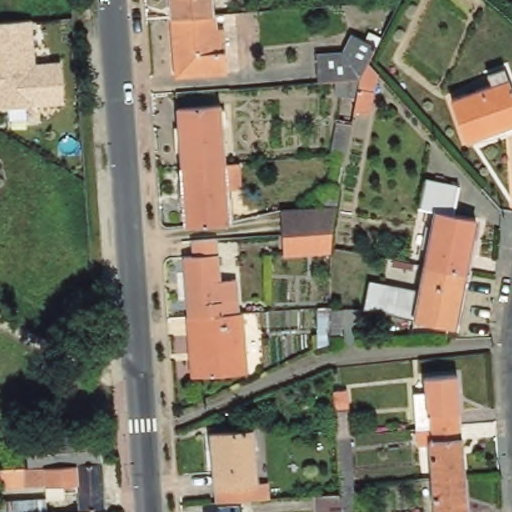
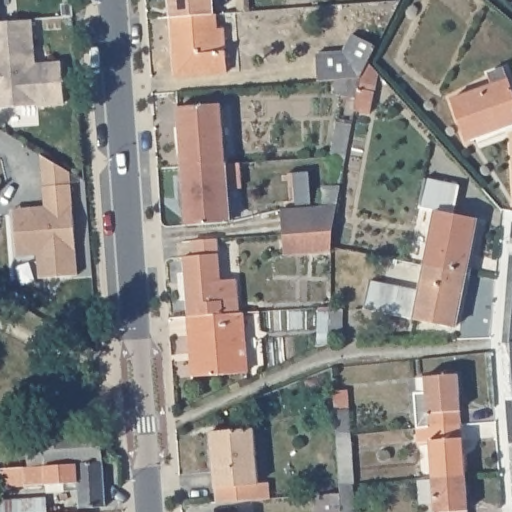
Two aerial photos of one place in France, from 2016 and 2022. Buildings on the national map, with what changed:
unchanged [(175,18),(173,18),(172,0),(213,0),(215,15),(175,18)]
unchanged [(221,29),(227,28),(231,73),(208,75),(207,71),(181,74),(178,40),(176,40),(175,18),(215,15),(220,15),(221,29)]
unchanged [(32,20),(35,63),(61,61),(65,103),(0,108),(0,24),(32,20)]
unchanged [(337,81),(321,82),(319,55),(346,52),(354,35),(377,46),(368,65),(376,74),(369,116),(354,114),(357,100),(339,101),(337,81)]
unchanged [(512,87),(512,125),(466,141),(452,99),(510,79),(512,87)]
unchanged [(222,106),(227,164),(183,167),(180,110),(222,106)]
unchanged [(352,126),(347,155),(333,156),(340,123),(352,126)]
unchanged [(227,164),(240,163),(241,181),(228,182),(231,224),(188,227),(183,167),(227,164)]
unchanged [(435,212),(417,208),(423,179),(459,186),(453,215),(474,219),(464,273),(424,266),(435,212)]
new [(46,186),(73,184),(80,275),(41,278),(40,254),(19,255),(16,220),(15,208),(29,207),(47,206),(46,186)]
unchanged [(281,214),(325,210),(324,188),(341,187),(332,236),(331,253),(331,256),(283,259),(282,240),(281,214)]
unchanged [(219,282),(236,281),(238,314),(188,318),(184,257),(193,256),(192,243),(216,240),(217,254),(219,282)]
unchanged [(419,290),(424,266),(464,273),(453,327),(363,311),(369,280),(419,290)]
unchanged [(56,297),(79,312),(72,324),(49,310),(56,297)]
unchanged [(238,314),(242,313),(245,374),(192,376),(188,318),(238,314)]
unchanged [(424,395),(424,378),(456,375),(460,427),(427,429),(415,430),(412,395),(424,395)]
unchanged [(333,468),(331,441),(328,398),(343,397),(346,440),(348,467),(333,468)]
unchanged [(460,427),(464,477),(431,479),(427,429),(460,427)]
unchanged [(253,433),(259,487),(271,487),(272,502),(216,506),(210,437),(253,433)]
unchanged [(104,435),(106,462),(31,467),(29,441),(104,435)]
unchanged [(31,467),(106,462),(108,507),(81,509),(79,482),(61,483),(61,480),(28,482),(27,467),(31,467)]
unchanged [(464,477),(467,512),(434,512),(431,479),(464,477)]
unchanged [(335,491),(346,490),(348,512),(336,512),(335,498),(335,491)]
unchanged [(22,502),(29,501),(47,500),(48,512),(22,512),(22,502)]

